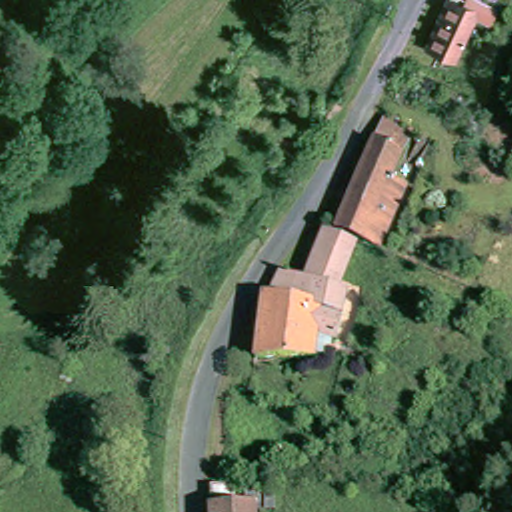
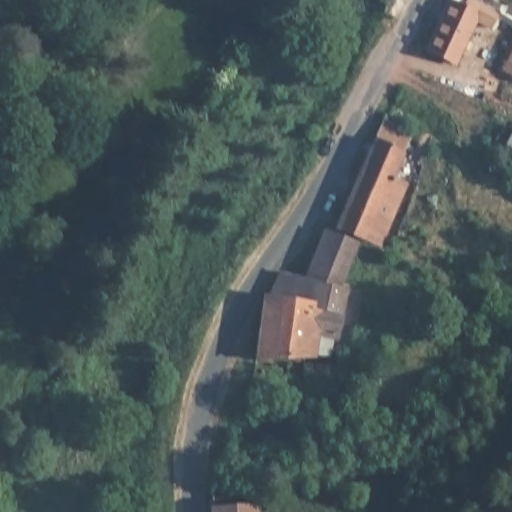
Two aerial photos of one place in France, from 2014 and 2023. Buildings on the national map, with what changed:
unchanged [(492,0),(502,0),(500,4),(492,0)]
unchanged [(475,18),(454,64),(425,51),(445,5),(475,18)]
unchanged [(413,181),(385,251),(334,229),(373,141),(380,124),(425,144),(418,160),(405,155),(397,174),(413,181)]
unchanged [(338,293),(360,301),(338,342),(317,337),(310,356),(253,355),(263,298),(308,305),(315,283),(304,280),(322,233),(356,247),(338,293)]
unchanged [(304,280),(315,283),(308,305),(263,298),(277,270),(304,280)]
unchanged [(247,500),(248,512),(208,512),(207,503),(247,500)]

